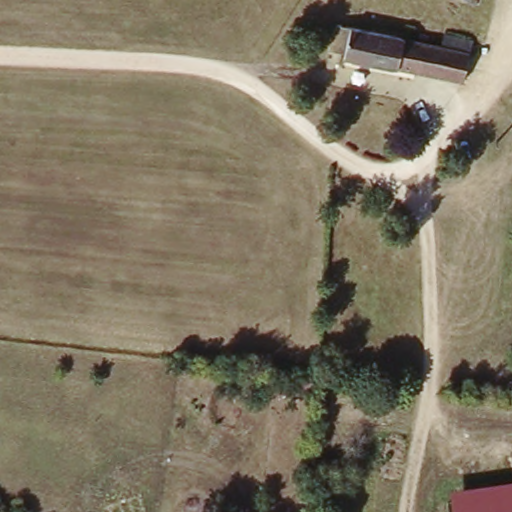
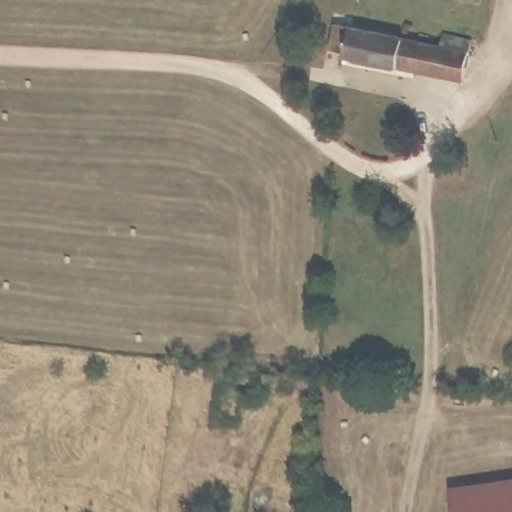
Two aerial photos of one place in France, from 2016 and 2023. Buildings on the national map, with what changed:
unchanged [(475,0),(484,0),(483,2),(475,0)]
unchanged [(346,30),(435,50),(438,37),(467,43),(457,83),(340,56),(346,30)]
unchanged [(452,512),(449,492),(512,484),(512,512),(452,512)]

